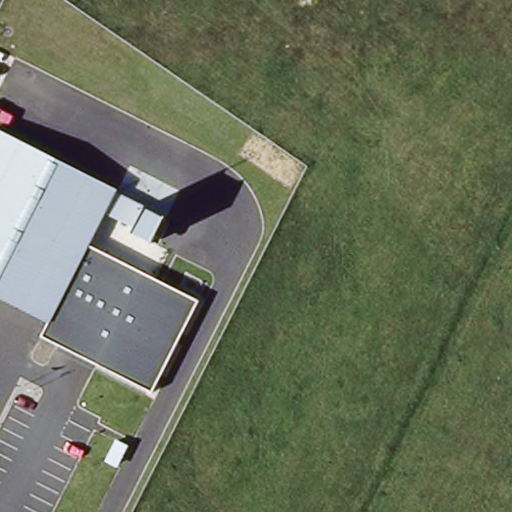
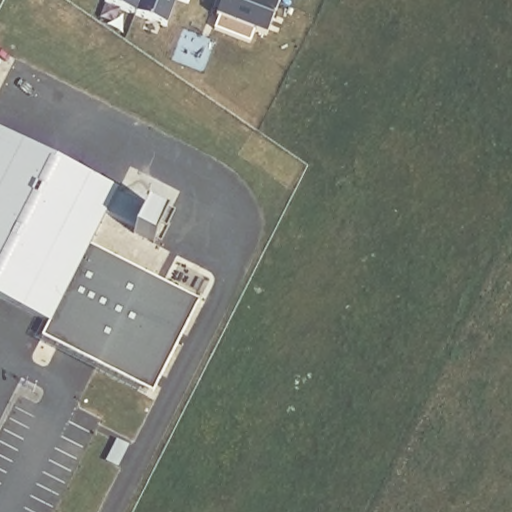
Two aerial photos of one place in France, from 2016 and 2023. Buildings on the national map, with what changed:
new [(105,0),(175,0),(165,25),(104,2),(105,0)]
new [(180,0),(189,0),(188,3),(180,0)]
new [(249,42),(214,29),(219,17),(216,15),(222,0),(279,0),(266,34),(254,30),(249,42)]
unchanged [(88,246),(198,300),(154,394),(43,338),(51,322),(0,296),(0,131),(116,189),(88,246)]

